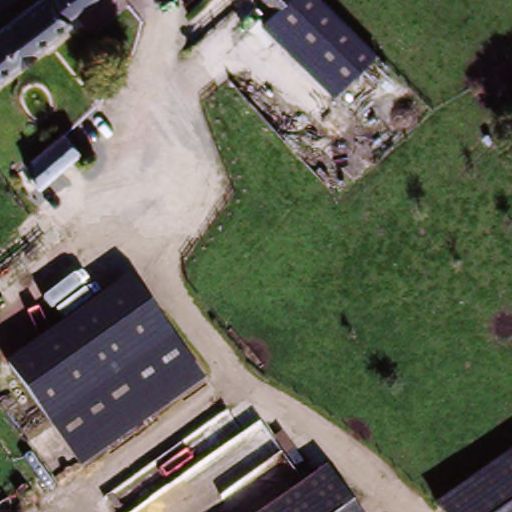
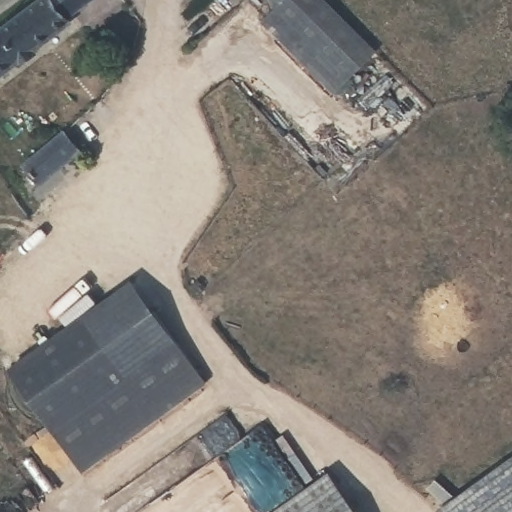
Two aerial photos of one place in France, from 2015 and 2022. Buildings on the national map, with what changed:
unchanged [(99,0),(72,21),(76,28),(0,82),(0,42),(57,0),(99,0)]
unchanged [(261,0),(296,0),(277,16),(261,0)]
unchanged [(348,84),(277,16),(296,0),(329,0),(381,51),(348,84)]
unchanged [(325,98),(257,31),(259,30),(277,16),(348,84),(335,97),(325,98)]
unchanged [(63,128),(83,151),(42,189),(24,164),(63,128)]
unchanged [(140,288),(209,394),(80,476),(12,371),(140,288)]
unchanged [(512,465),(512,512),(448,512),(445,506),(512,465)]
unchanged [(335,479),(358,512),(288,512),(335,479)]

